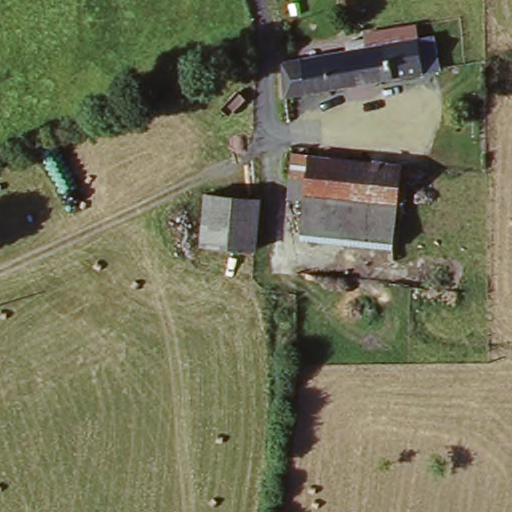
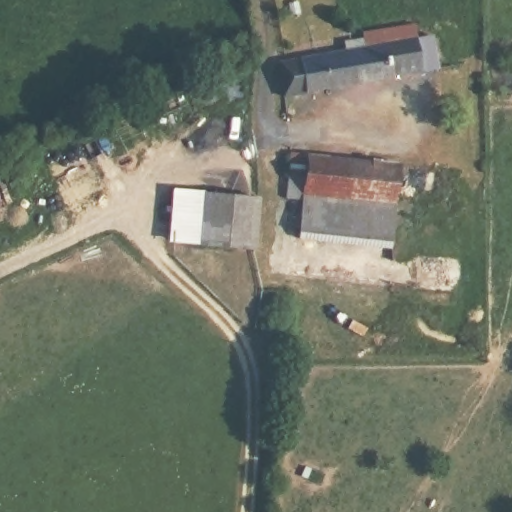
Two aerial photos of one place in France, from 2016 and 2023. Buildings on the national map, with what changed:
unchanged [(432,35),(437,70),(285,98),(281,64),(432,35)]
unchanged [(288,199),(293,155),(328,158),(324,203),(305,200),(288,199)]
unchanged [(324,203),(328,158),(402,167),(396,213),(324,203)]
new [(201,245),(167,242),(174,190),(206,194),(201,245)]
unchanged [(259,200),(255,251),(201,245),(206,194),(259,200)]
unchanged [(324,203),(396,213),(392,249),(301,235),(305,200),(324,203)]

